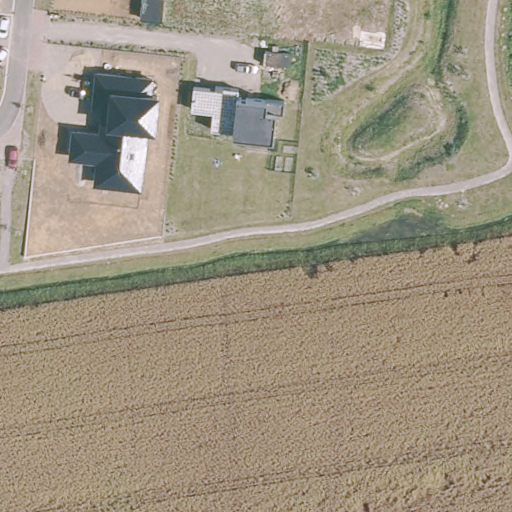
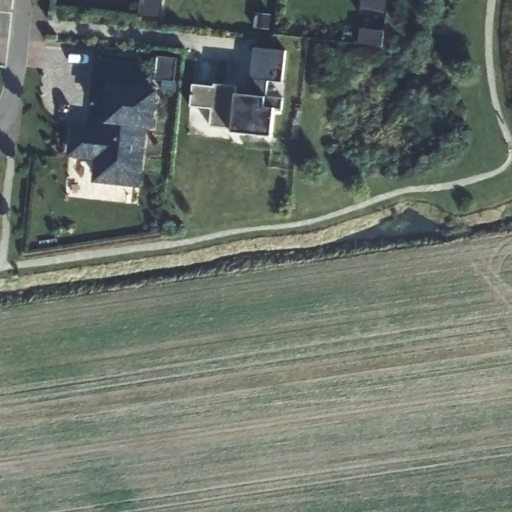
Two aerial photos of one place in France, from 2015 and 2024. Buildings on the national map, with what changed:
new [(386,13),(362,10),(363,0),(388,0),(386,13)]
new [(282,84),(266,81),(264,96),(248,94),(255,47),(286,51),(282,84)]
unchanged [(154,76),(150,90),(160,91),(156,129),(147,128),(142,188),(93,182),(95,160),(69,156),(72,126),(99,128),(100,106),(94,105),(97,67),(154,76)]
unchanged [(240,86),(238,94),(285,97),(284,110),(276,109),(274,137),(234,132),(212,128),(214,111),(192,108),(194,85),(240,86)]

